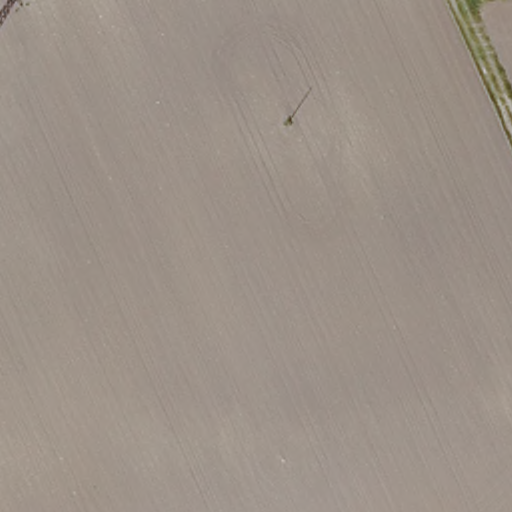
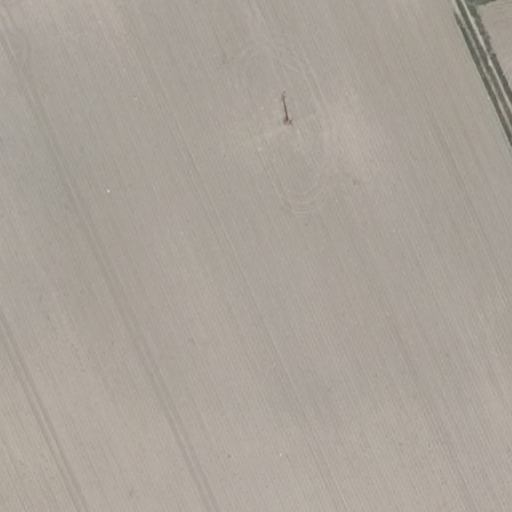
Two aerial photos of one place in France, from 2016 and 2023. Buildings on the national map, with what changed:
[]

